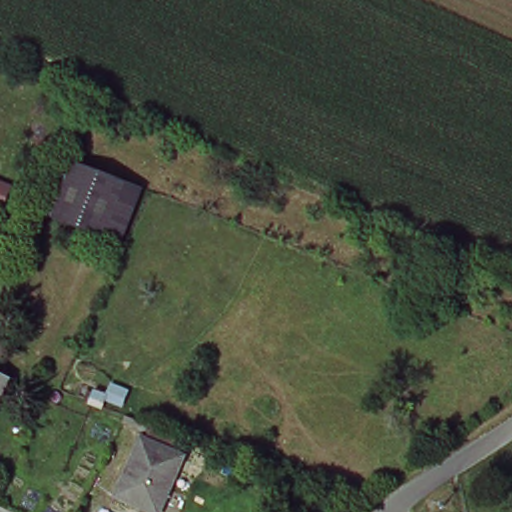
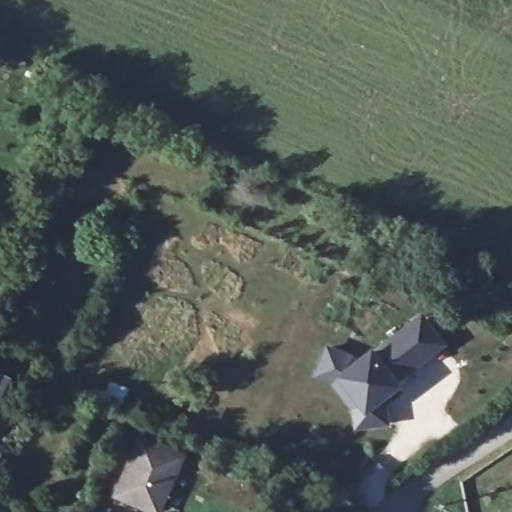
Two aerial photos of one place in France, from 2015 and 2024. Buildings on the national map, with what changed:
demolished [(53,218),(75,163),(130,185),(107,241),(53,218)]
unchanged [(0,196),(0,186),(3,187),(0,196)]
new [(447,344),(399,380),(403,384),(399,388),(402,392),(387,404),(391,424),(355,429),(351,411),(330,383),(312,376),(326,343),(359,355),(372,345),(375,348),(419,311),(447,344)]
unchanged [(0,402),(0,377),(9,381),(0,402)]
unchanged [(138,443),(176,459),(153,512),(148,512),(114,498),(138,443)]

